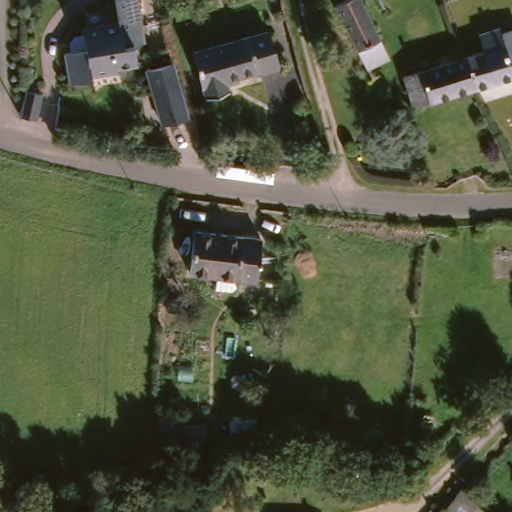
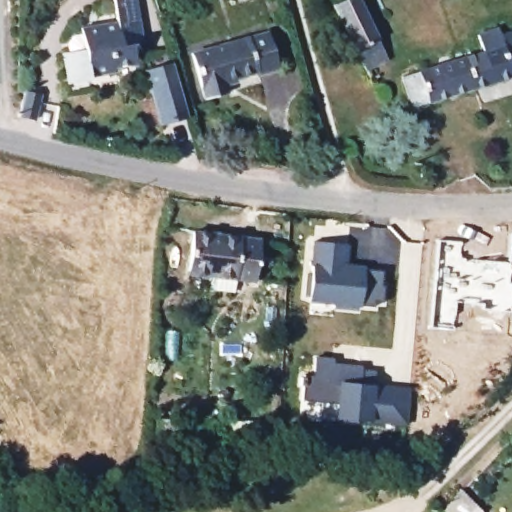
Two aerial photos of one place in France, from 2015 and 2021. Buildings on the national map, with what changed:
unchanged [(68,33),(77,32),(76,25),(114,20),(111,0),(137,0),(144,43),(132,44),(134,62),(113,66),(114,70),(86,75),(86,80),(64,82),(59,50),(64,49),(62,40),(68,33)]
unchanged [(337,6),(349,0),(374,0),(375,1),(365,6),(388,57),(365,69),(337,6)]
unchanged [(494,7),(505,30),(487,38),(477,15),(494,7)]
unchanged [(280,66),(257,71),(256,67),(227,75),(231,86),(211,91),(199,47),(270,30),(280,66)]
unchanged [(490,46),(491,43),(512,37),(512,74),(486,82),(473,51),(490,46)]
unchanged [(418,102),(408,72),(473,51),(486,82),(418,102)]
new [(173,68),(187,124),(163,130),(149,74),(173,68)]
unchanged [(36,81),(54,85),(47,114),(29,110),(36,81)]
unchanged [(262,240),(255,281),(191,271),(196,230),(262,240)]
new [(303,293),(306,272),(310,272),(314,241),(348,244),(344,265),(351,266),(381,269),(379,288),(382,288),(380,305),(372,304),(372,309),(355,308),(355,312),(332,310),(333,306),(307,303),(308,294),(303,293)]
new [(401,426),(389,423),(355,419),(355,423),(317,420),(318,401),(299,399),(301,374),(313,375),(315,357),(332,358),(331,363),(358,367),(358,378),(371,379),(371,385),(393,387),(407,389),(401,426)]
unchanged [(159,444),(162,416),(180,418),(180,424),(201,426),(197,448),(159,444)]
unchanged [(482,507),(479,512),(438,512),(457,491),(482,507)]

